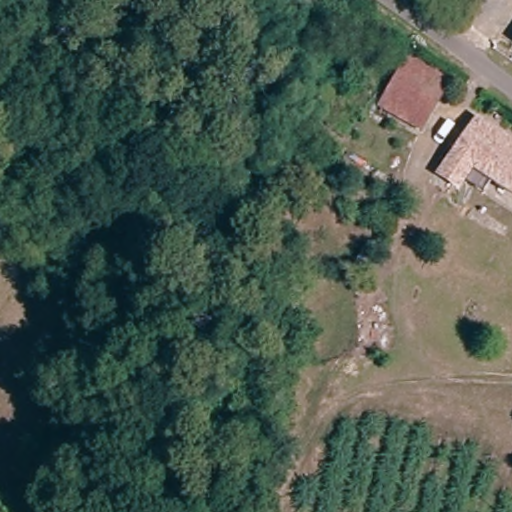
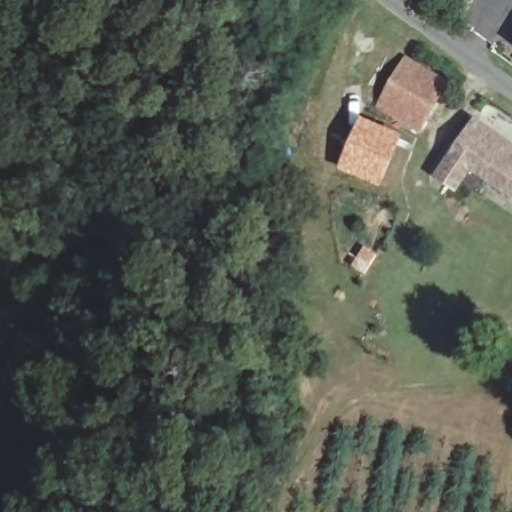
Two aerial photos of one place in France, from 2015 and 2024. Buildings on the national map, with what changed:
unchanged [(381,106),(412,62),(423,69),(450,88),(440,101),(419,133),(381,106)]
new [(360,118),(402,137),(382,190),(337,172),(360,118)]
unchanged [(512,146),(512,194),(471,165),(462,178),(455,186),(446,179),(439,174),(476,121),(512,146)]

